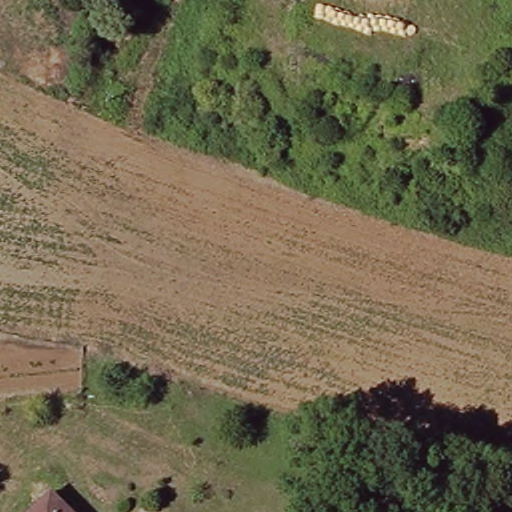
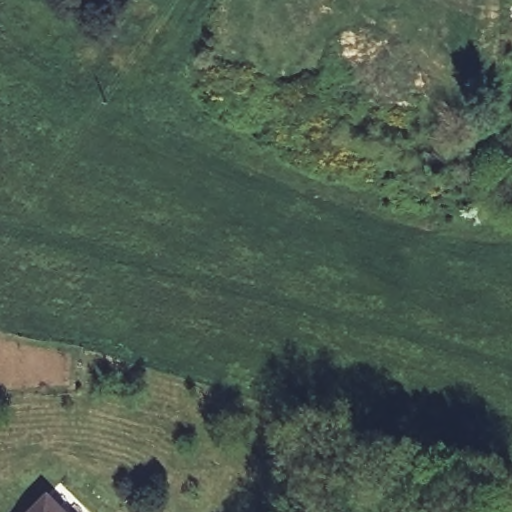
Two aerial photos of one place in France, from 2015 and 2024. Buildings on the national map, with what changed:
unchanged [(71,512),(33,512),(54,493),(71,512)]

